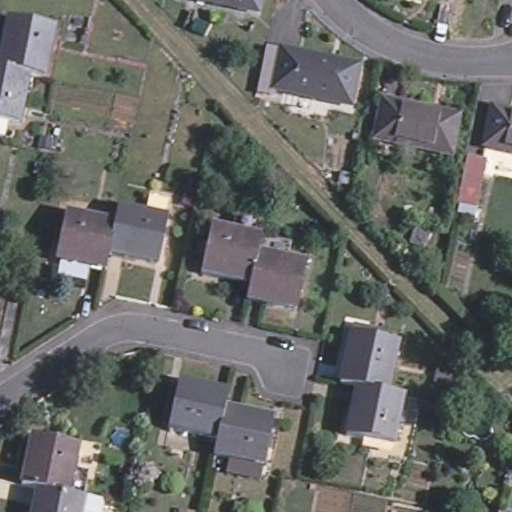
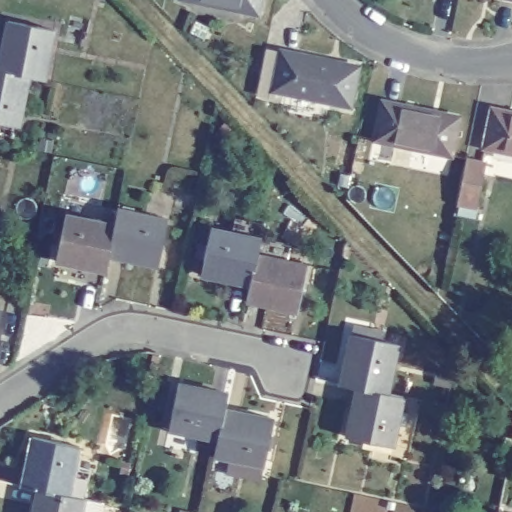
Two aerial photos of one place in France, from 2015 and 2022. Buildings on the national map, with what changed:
unchanged [(189,0),(263,0),(259,15),(189,0)]
unchanged [(5,22),(51,32),(43,80),(26,77),(0,72),(0,47),(5,22)]
unchanged [(366,111),(352,107),(274,91),(282,52),(360,70),(374,73),(366,111)]
unchanged [(26,77),(16,126),(0,123),(0,72),(26,77)]
unchanged [(461,120),(453,160),(376,143),(384,104),(461,120)]
unchanged [(494,110),(512,114),(512,155),(486,150),(494,110)]
unchanged [(484,163),(474,209),(455,205),(464,159),(484,163)]
unchanged [(117,228),(121,210),(170,221),(161,266),(111,256),(117,228)]
unchanged [(60,262),(69,216),(117,228),(111,256),(108,273),(60,262)]
unchanged [(204,276),(213,231),(261,241),(259,256),(253,286),(204,276)]
unchanged [(253,286),(259,256),(308,267),(298,312),(249,302),(253,286)]
unchanged [(1,312),(0,320),(0,312),(1,312)]
unchanged [(386,395),(354,388),(339,385),(349,338),(351,339),(354,329),(397,338),(394,348),(396,348),(386,395)]
unchanged [(221,411),(214,442),(166,431),(176,386),(224,396),(221,411)]
unchanged [(386,395),(400,399),(389,449),(343,440),(354,388),(386,395)]
unchanged [(269,420),(258,466),(211,457),(214,442),(221,411),(269,420)]
unchanged [(36,490),(21,487),(31,438),(78,448),(68,497),(36,490)]
unchanged [(83,500),(101,504),(99,512),(32,512),(36,490),(68,497),(83,500)]

